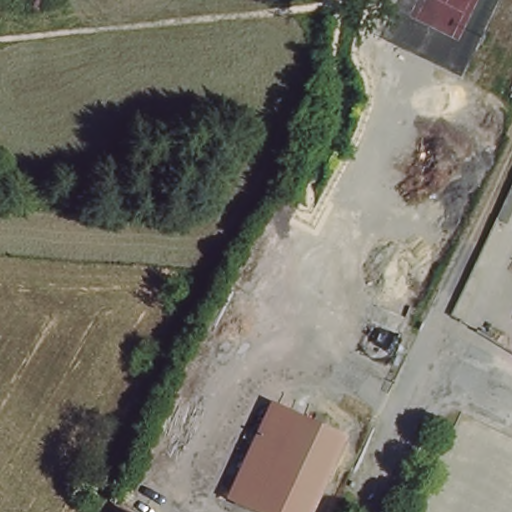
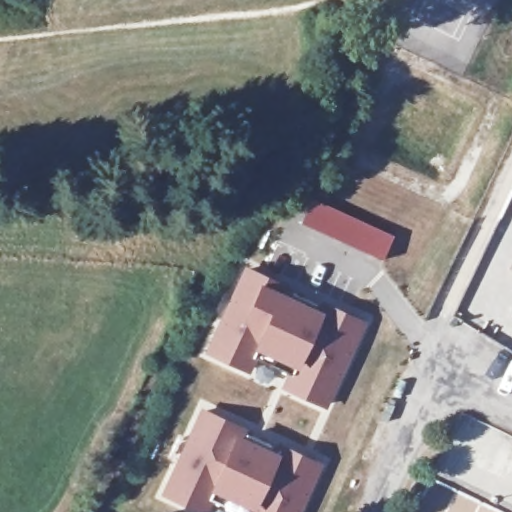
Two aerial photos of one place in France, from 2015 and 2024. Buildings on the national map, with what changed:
new [(393,237),(382,264),(300,226),(312,200),(393,237)]
new [(292,289),(288,298),(317,312),(321,302),(367,324),(328,412),(283,392),(289,377),(294,380),(298,372),(255,352),(252,360),(257,362),(250,377),(204,355),(245,266),(292,289)]
new [(249,431),(246,440),(273,454),(278,445),(324,466),(302,512),(249,512),(213,495),(210,502),(214,504),(210,512),(192,512),(160,497),(201,407),(249,431)]
demolished [(229,501),(273,414),(342,445),(308,512),(250,512),(229,501)]

